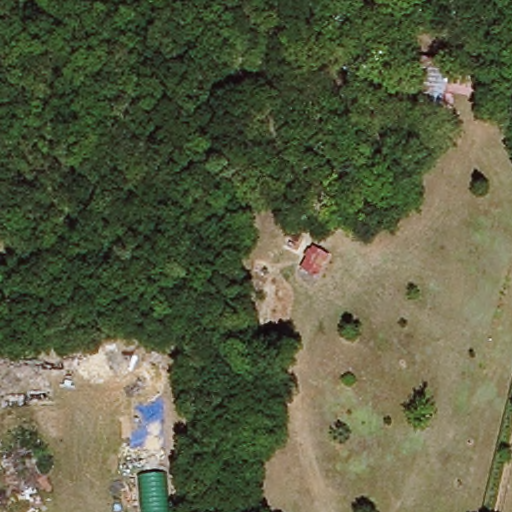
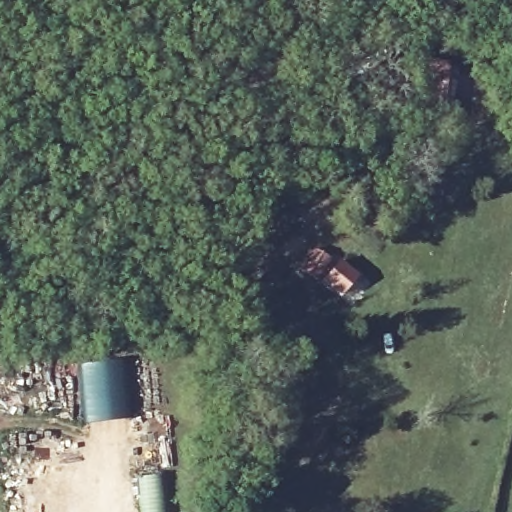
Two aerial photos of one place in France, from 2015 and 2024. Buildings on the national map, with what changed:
unchanged [(441,116),(397,109),(408,57),(450,63),(441,116)]
unchanged [(313,281),(299,272),(305,262),(311,252),(326,260),(322,267),(313,281)]
new [(91,423),(82,370),(105,367),(106,373),(119,373),(119,363),(126,363),(127,421),(101,423),(91,423)]
unchanged [(169,473),(172,512),(143,512),(140,478),(169,473)]

